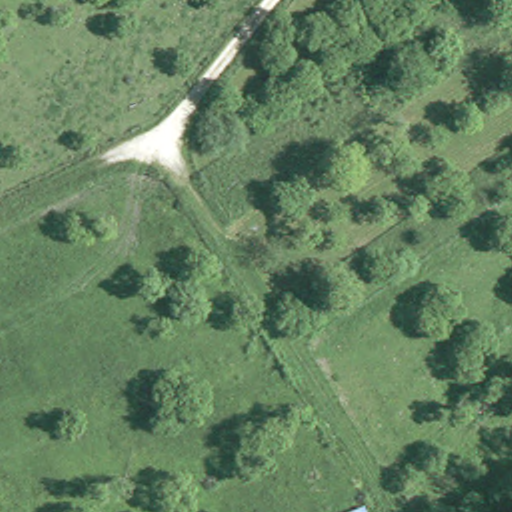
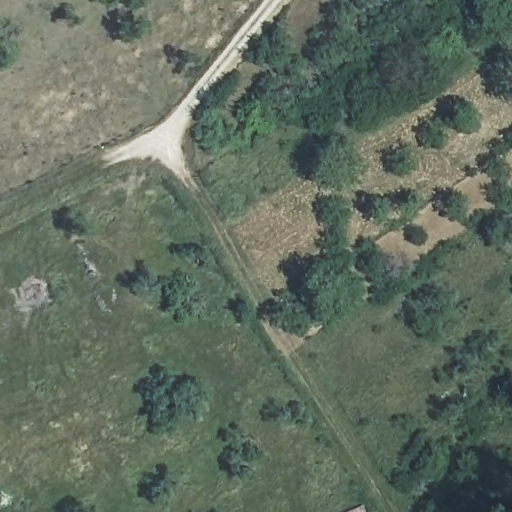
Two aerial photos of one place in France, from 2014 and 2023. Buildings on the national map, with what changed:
unchanged [(368,512),(339,512),(365,505),(368,512)]

